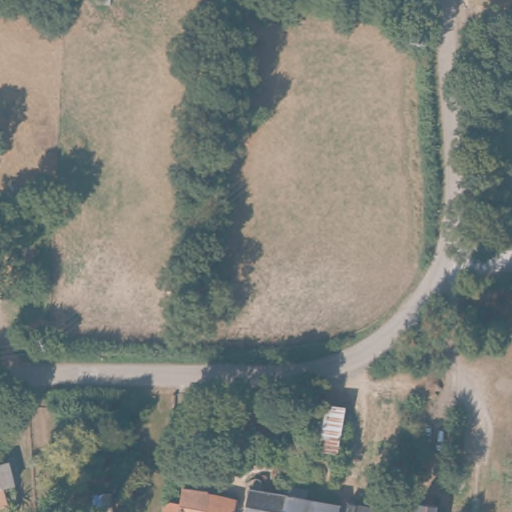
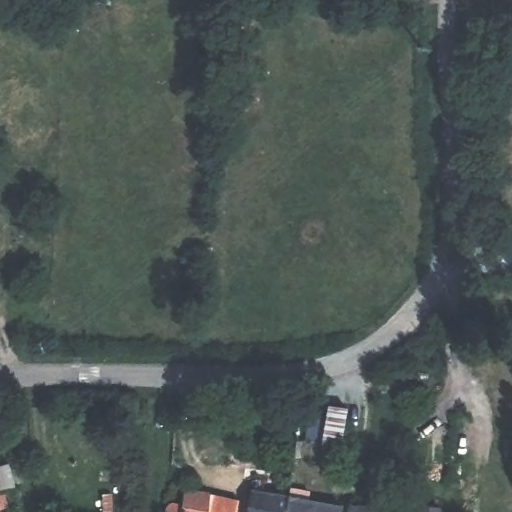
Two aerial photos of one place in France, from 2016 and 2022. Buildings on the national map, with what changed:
unchanged [(336,409),(342,410),(337,460),(317,458),(321,409),(336,409)]
unchanged [(190,461),(190,476),(174,475),(174,460),(190,461)]
unchanged [(241,492),(238,512),(188,512),(191,483),(241,492)]
unchanged [(293,496),(291,512),(249,512),(252,489),(293,495),(293,496)]
unchanged [(393,503),(396,493),(412,497),(409,512),(392,509),(392,512),(357,512),(358,507),(378,510),(381,502),(393,503)]
unchanged [(357,512),(291,512),(293,496),(358,507),(357,512)]
unchanged [(184,512),(172,512),(172,510),(184,512)]

